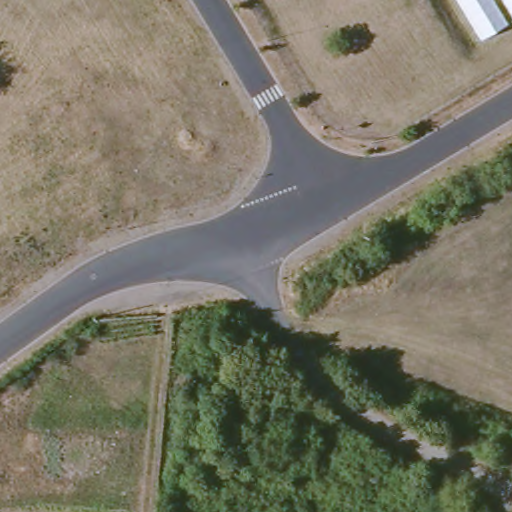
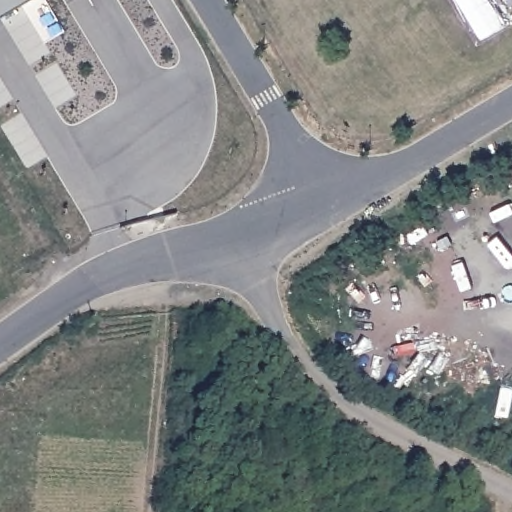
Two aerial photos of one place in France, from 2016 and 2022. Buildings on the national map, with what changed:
new [(0,17),(0,0),(29,0),(0,17)]

